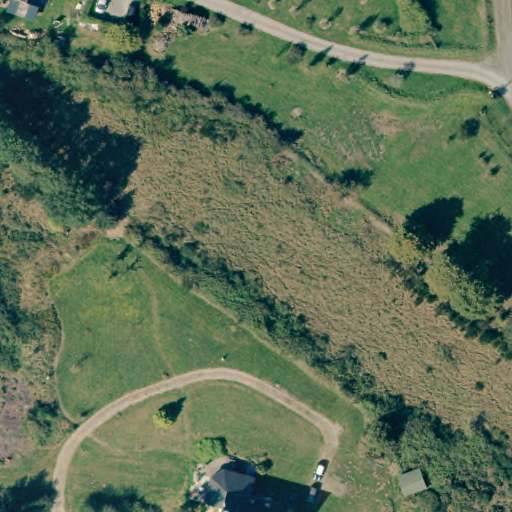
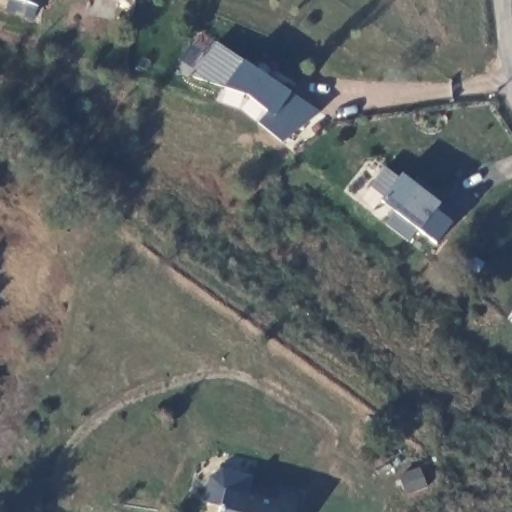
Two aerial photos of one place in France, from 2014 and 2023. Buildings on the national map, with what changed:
unchanged [(38,9),(13,0),(42,0),(38,9)]
new [(284,143),(260,123),(270,110),(249,92),(195,76),(216,42),(319,113),(284,143)]
new [(383,168),(397,179),(400,175),(422,191),(423,189),(457,215),(435,244),(416,230),(407,242),(385,225),(394,213),(379,202),(382,198),(368,187),(383,168)]
unchanged [(272,500),(275,487),(296,492),(291,512),(216,512),(223,486),(272,500)]

